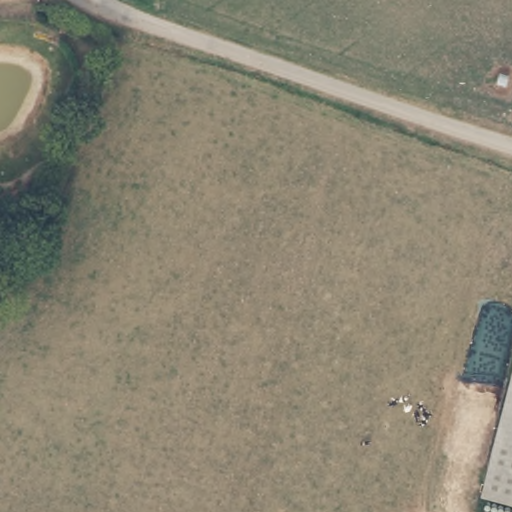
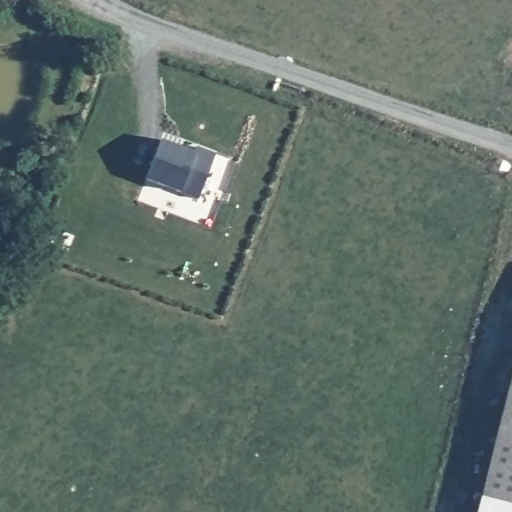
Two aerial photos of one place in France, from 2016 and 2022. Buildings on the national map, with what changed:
new [(198,198),(180,191),(145,179),(159,140),(194,153),(195,145),(215,152),(198,198)]
unchanged [(481,481),(512,391),(512,492),(500,488),(481,481)]

